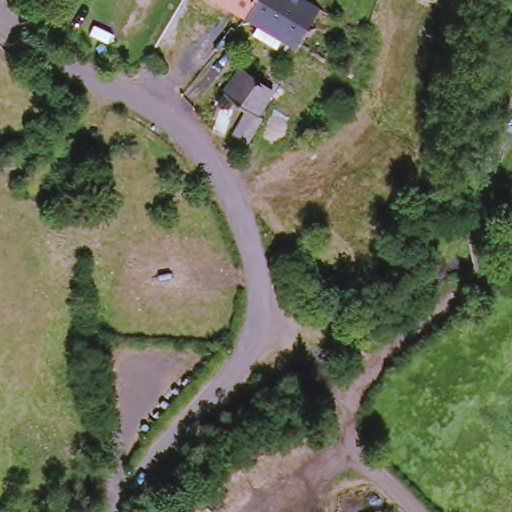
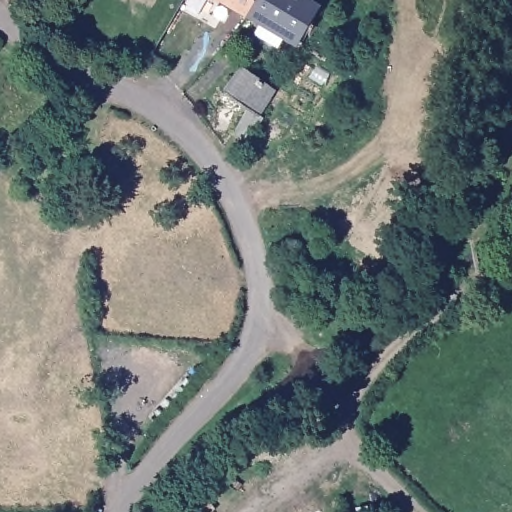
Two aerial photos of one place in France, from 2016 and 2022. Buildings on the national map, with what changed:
unchanged [(213,0),(260,0),(248,21),(213,0)]
unchanged [(320,11),(300,50),(286,42),(280,54),(256,41),(263,29),(248,21),(260,0),(301,0),(320,11)]
unchanged [(276,92),(261,119),(265,122),(250,147),(236,140),(250,113),(226,99),(240,76),(249,67),(275,82),(270,90),(276,92)]

